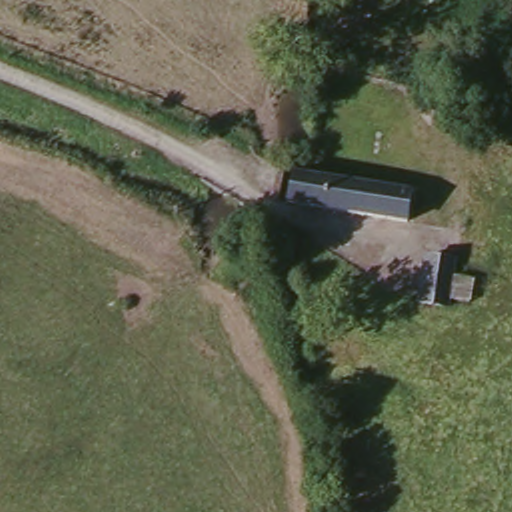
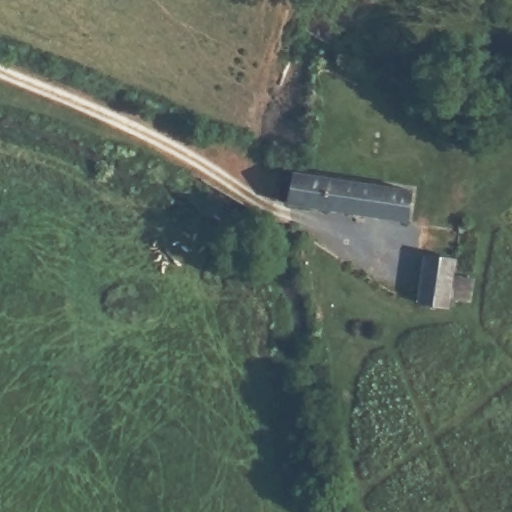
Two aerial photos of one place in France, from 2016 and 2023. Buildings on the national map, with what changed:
unchanged [(292,173),(429,192),(436,194),(432,221),(359,209),(287,201),(292,173)]
unchanged [(460,264),(452,305),(416,297),(423,256),(460,264)]

